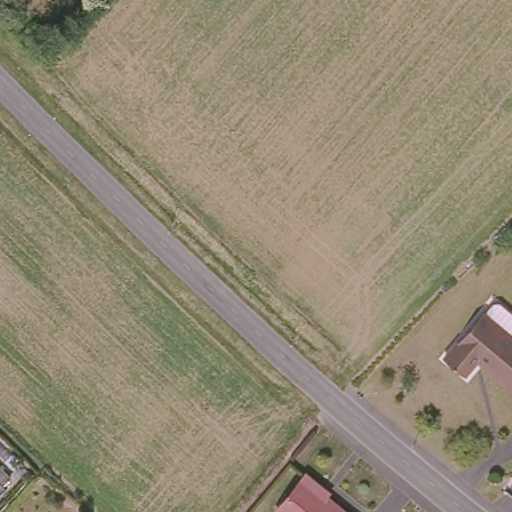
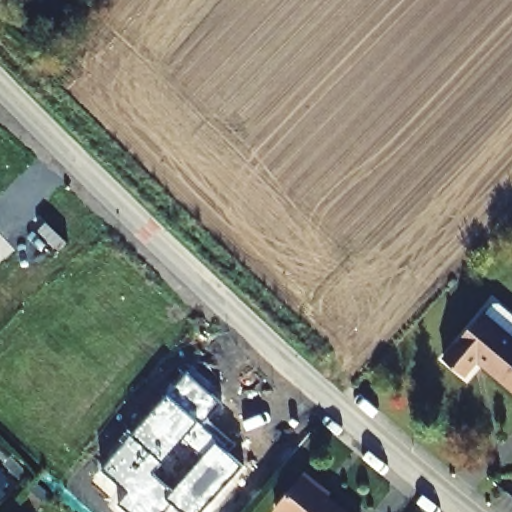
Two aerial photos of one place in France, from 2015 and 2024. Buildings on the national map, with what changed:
unchanged [(492,297),(504,295),(512,303),(512,381),(479,352),(464,369),(441,350),(481,306),(492,297)]
new [(221,403),(208,417),(237,444),(229,452),(243,465),(202,512),(183,512),(172,503),(164,512),(131,512),(119,502),(129,492),(103,468),(188,371),(221,403)]
demolished [(0,487),(0,468),(8,478),(0,487)]
unchanged [(326,489),(322,493),(343,512),(281,512),(276,508),(306,473),(326,489)]
demolished [(0,494),(0,487),(3,491),(0,494)]
new [(0,498),(0,487),(6,493),(0,498)]

